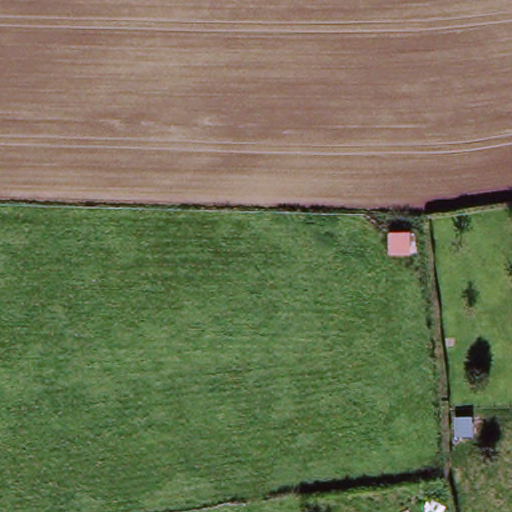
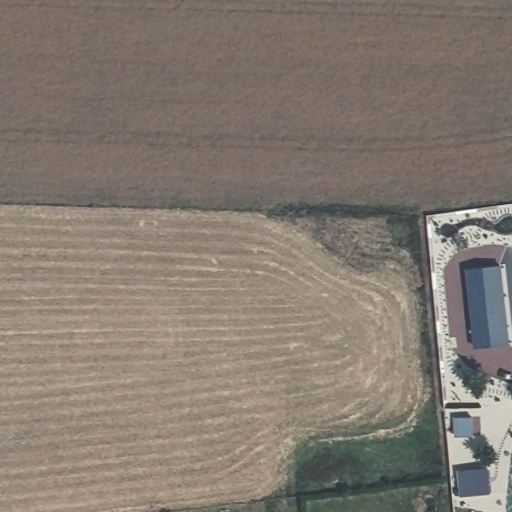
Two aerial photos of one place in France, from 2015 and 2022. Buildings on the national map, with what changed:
new [(500,266),(508,344),(474,348),(465,270),(500,266)]

